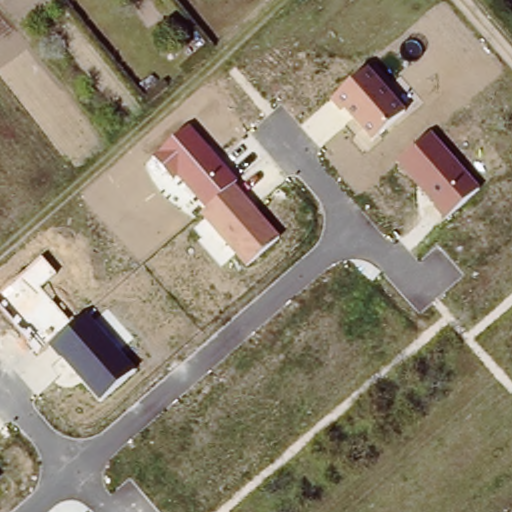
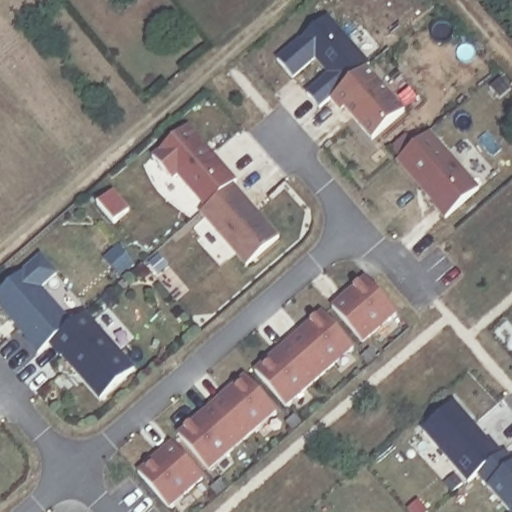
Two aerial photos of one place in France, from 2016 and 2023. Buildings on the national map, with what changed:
new [(314,59),(292,79),(277,62),(326,17),(369,66),(319,110),(307,95),(329,75),(314,59)]
unchanged [(406,112),(372,142),(346,111),(341,114),(331,102),(368,69),(406,112)]
unchanged [(248,266),(201,215),(206,210),(178,179),(174,182),(153,158),(189,127),(236,182),(233,185),(279,237),(248,266)]
unchanged [(431,134),(481,191),(446,221),(434,208),(436,206),(399,164),(431,134)]
new [(115,187),(131,207),(116,220),(100,201),(115,187)]
unchanged [(50,347),(40,355),(28,342),(31,338),(0,306),(0,294),(42,258),(56,276),(40,290),(71,326),(87,314),(136,371),(100,401),(50,347)]
new [(366,278),(397,313),(363,343),(332,308),(366,278)]
new [(323,312),(354,347),(319,377),(289,342),(323,312)]
new [(289,342),(319,377),(286,407),(255,372),(289,342)]
new [(246,377),(277,412),(243,442),(211,406),(246,377)]
new [(454,403),(489,443),(491,441),(502,454),(478,475),(468,483),(422,431),(454,403)]
new [(211,406),(243,442),(209,471),(178,436),(211,406)]
new [(172,444),(203,479),(169,509),(138,473),(172,444)]
new [(504,452),(512,460),(512,512),(510,512),(478,475),(502,454),(504,452)]

